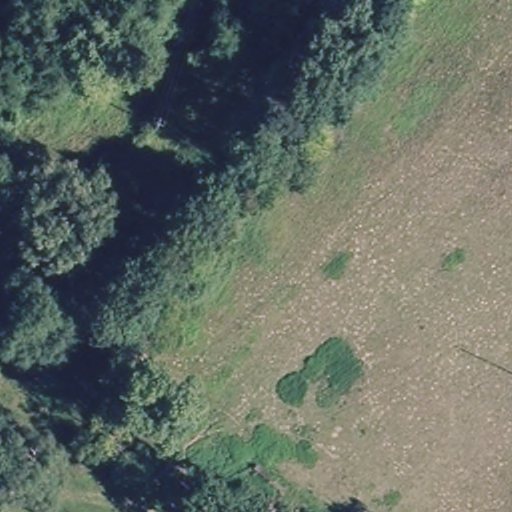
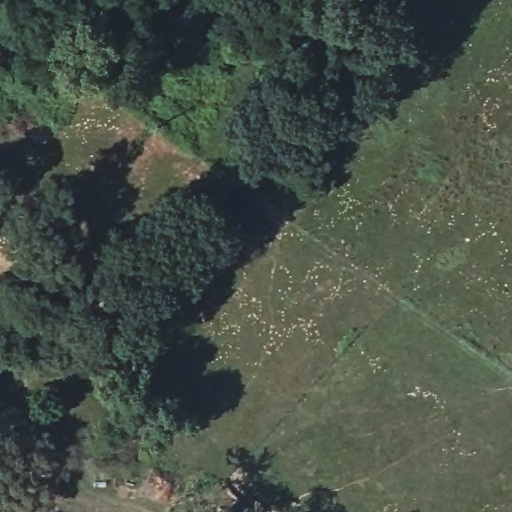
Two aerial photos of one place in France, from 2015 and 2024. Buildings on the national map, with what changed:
unchanged [(4,512),(0,512),(0,501),(1,501),(4,512)]

